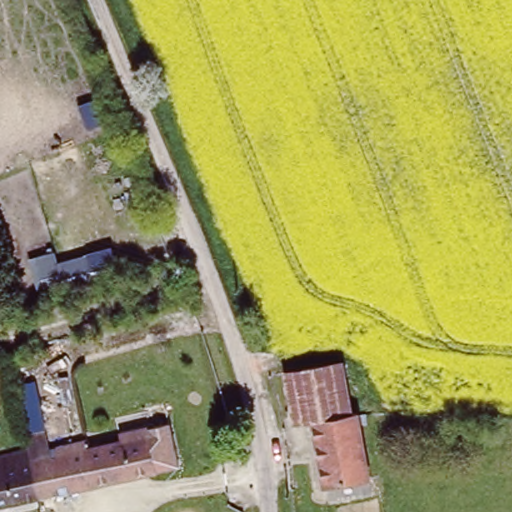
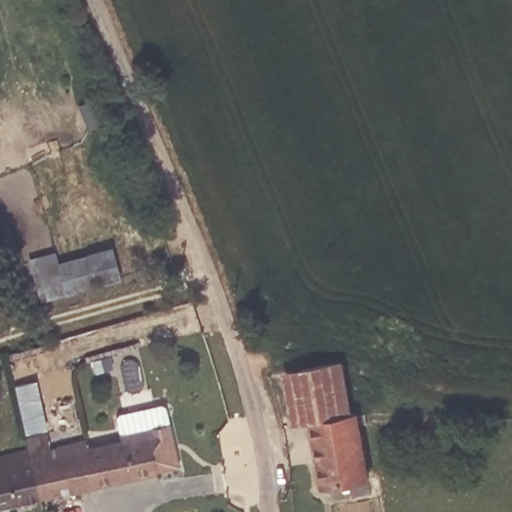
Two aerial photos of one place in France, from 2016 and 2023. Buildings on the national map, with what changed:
unchanged [(55,250),(58,262),(113,245),(121,273),(39,295),(28,259),(55,250)]
unchanged [(282,372),(326,364),(342,363),(349,415),(309,421),(290,424),(282,372)]
unchanged [(320,484),(309,421),(349,415),(360,414),(371,479),(320,484)]
unchanged [(39,447),(102,432),(105,444),(132,439),(131,431),(169,422),(181,469),(51,499),(39,447)]
unchanged [(51,499),(0,511),(0,456),(39,447),(51,499)]

